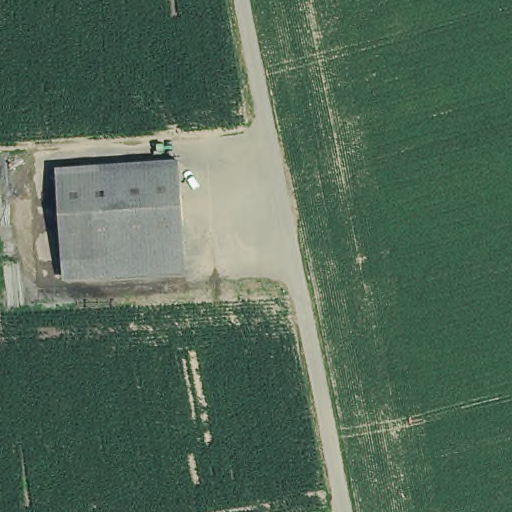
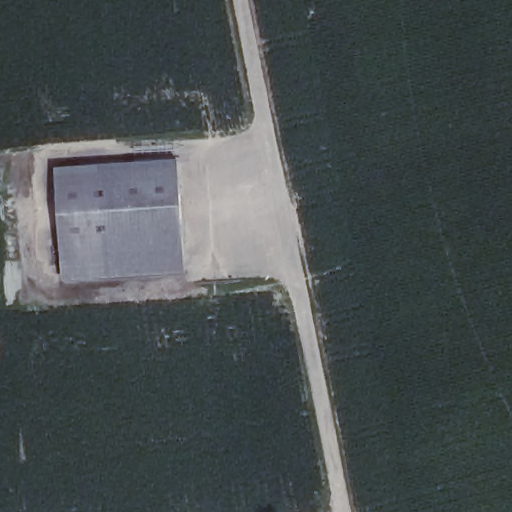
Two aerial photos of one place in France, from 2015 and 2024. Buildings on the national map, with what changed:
unchanged [(53,175),(174,166),(181,258),(59,266),(53,175)]
unchanged [(181,258),(181,275),(60,284),(59,266),(181,258)]

